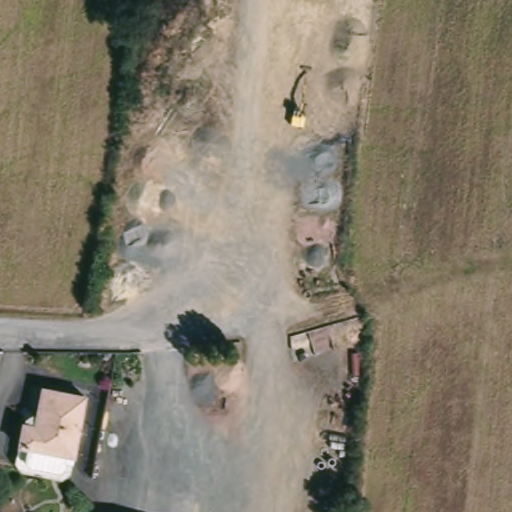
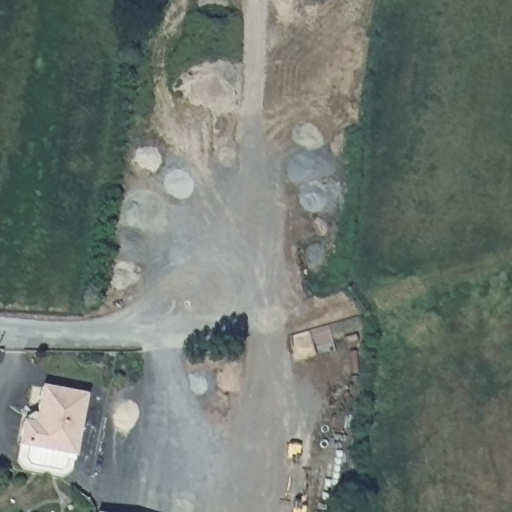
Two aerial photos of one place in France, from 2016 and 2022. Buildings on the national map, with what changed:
unchanged [(83,398),(74,461),(12,450),(18,419),(35,421),(39,389),(83,398)]

